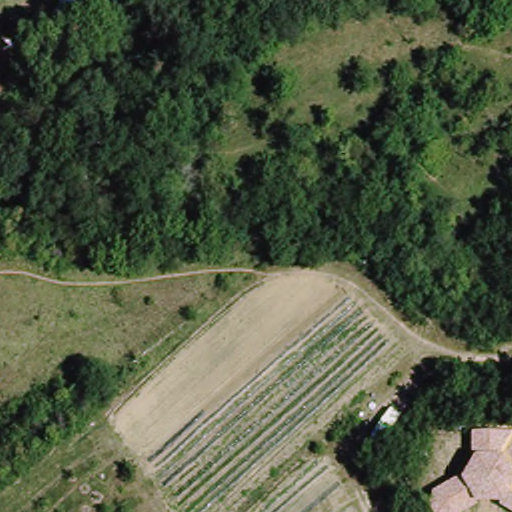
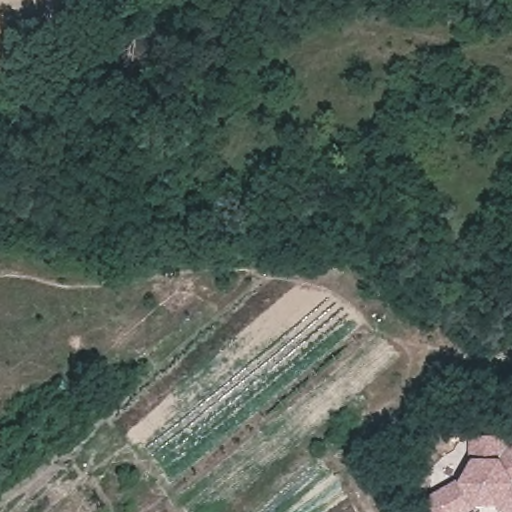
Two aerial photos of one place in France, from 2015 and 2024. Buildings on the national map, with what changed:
unchanged [(427,502),(433,492),(460,481),(472,457),(471,434),(512,435),(512,512),(507,512),(498,507),(500,504),(474,504),(475,507),(465,512),(432,512),(427,502)]

